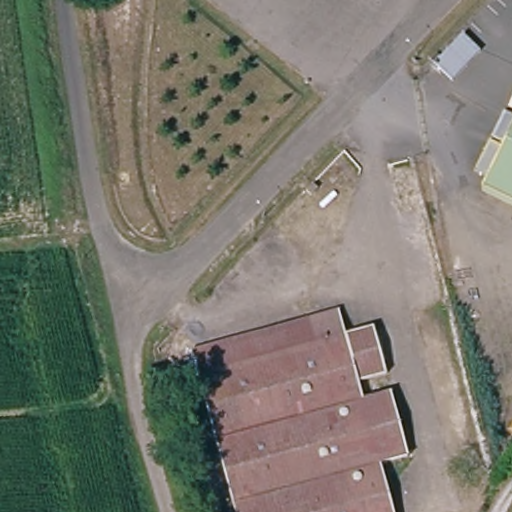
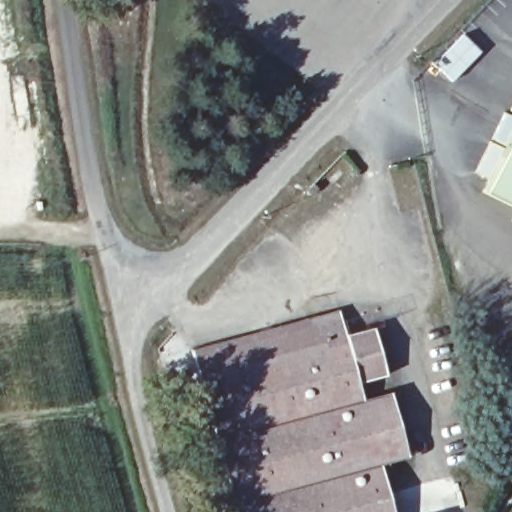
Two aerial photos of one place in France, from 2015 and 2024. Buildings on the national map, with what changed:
unchanged [(488,199),(512,146),(512,209),(488,199)]
unchanged [(230,494),(207,500),(200,467),(222,462),(195,340),(380,303),(411,460),(386,465),(395,512),(234,512),(230,494)]

